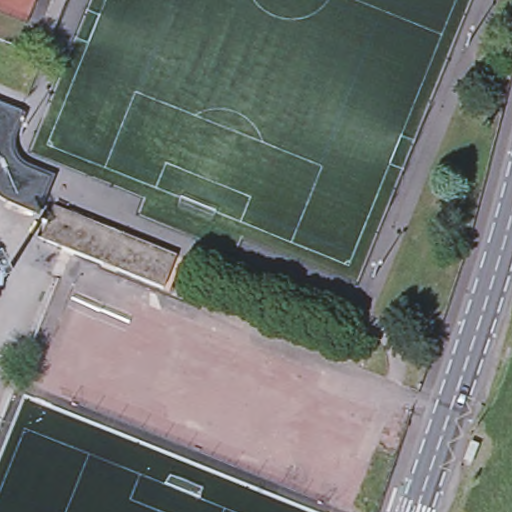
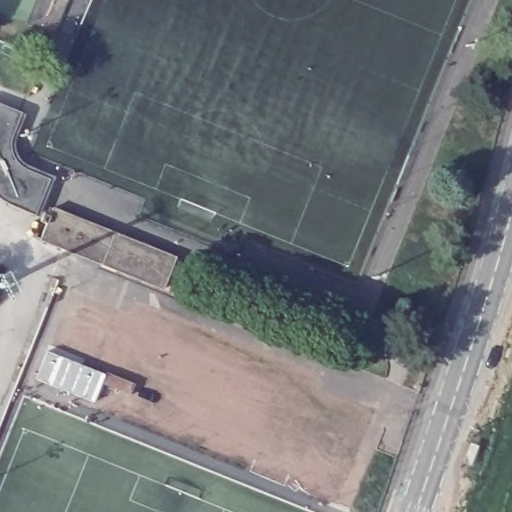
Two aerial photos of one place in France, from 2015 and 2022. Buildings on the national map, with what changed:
unchanged [(15,144),(16,153),(25,162),(50,174),(36,212),(8,202),(0,195),(0,100),(27,109),(15,144)]
unchanged [(57,213),(176,262),(165,292),(45,243),(57,213)]

